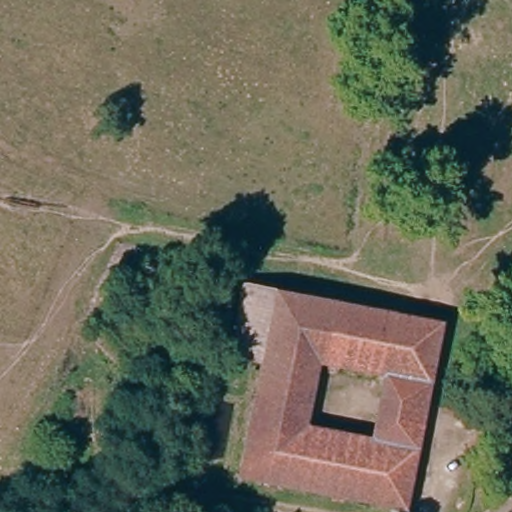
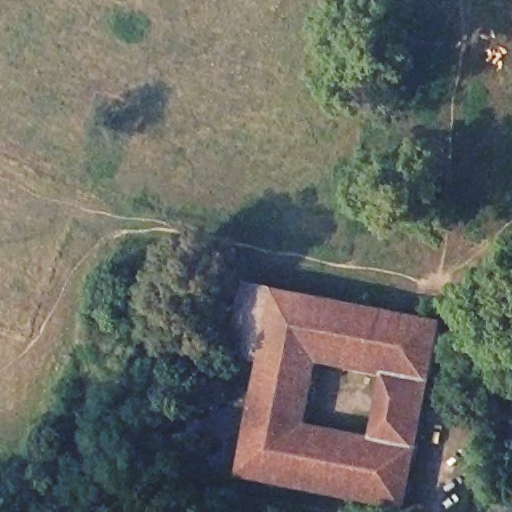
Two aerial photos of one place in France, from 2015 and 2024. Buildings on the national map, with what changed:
unchanged [(401,503),(243,472),(265,357),(228,350),(241,285),(436,323),(426,375),(401,503)]

